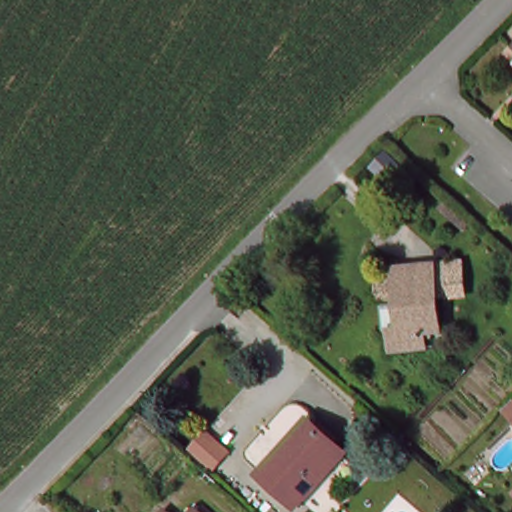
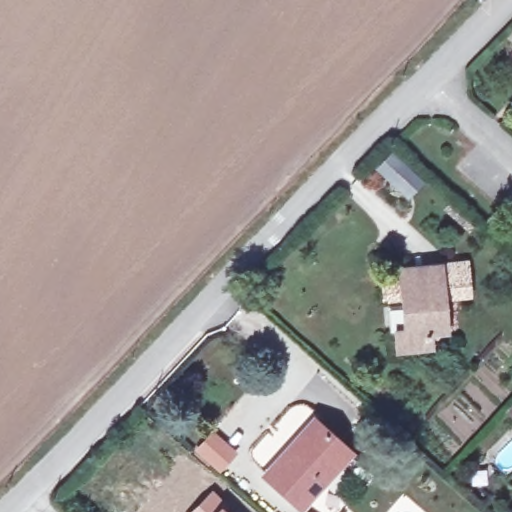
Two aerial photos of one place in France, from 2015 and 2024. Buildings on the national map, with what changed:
unchanged [(427,340),(429,363),(392,363),(386,267),(465,260),(471,299),(445,306),(444,338),(427,340)]
unchanged [(337,456),(294,505),(264,478),(307,430),(337,456)]

